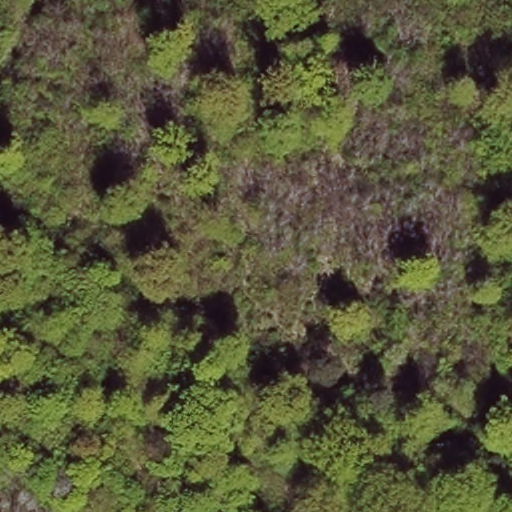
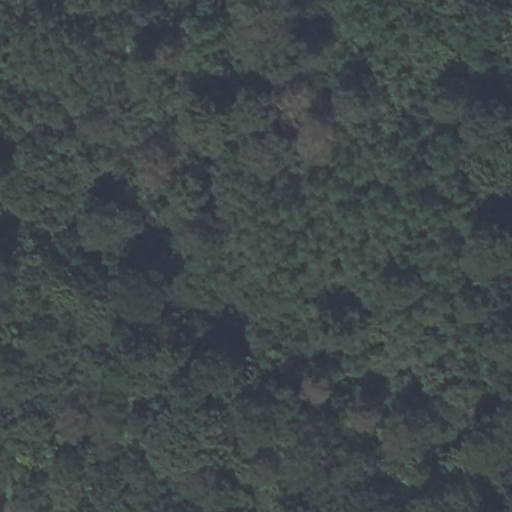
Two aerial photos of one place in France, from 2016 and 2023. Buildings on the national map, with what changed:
[]

